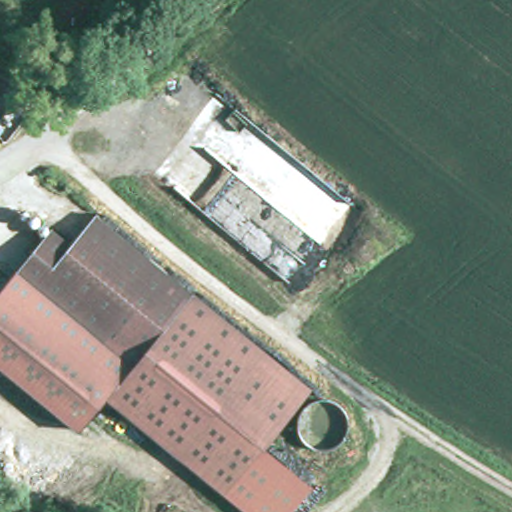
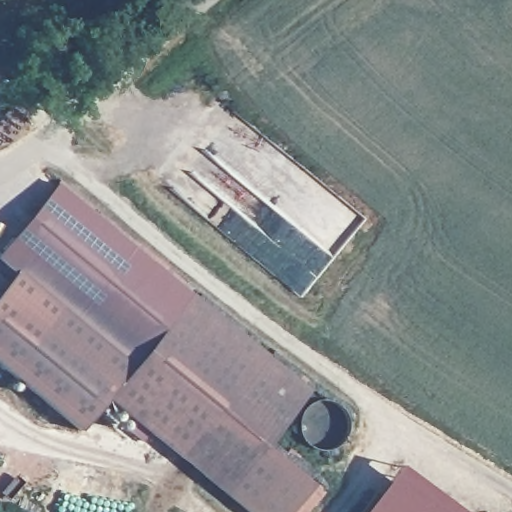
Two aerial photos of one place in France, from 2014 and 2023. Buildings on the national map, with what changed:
new [(0,253),(57,183),(96,215),(71,247),(53,232),(17,277),(0,263),(0,253)]
unchanged [(17,277),(53,232),(71,247),(96,215),(195,289),(135,368),(17,277)]
unchanged [(266,447),(312,484),(292,512),(248,512),(107,397),(81,432),(0,365),(0,295),(17,277),(135,368),(195,289),(311,389),(266,447)]
new [(397,465),(461,512),(361,512),(397,465)]

